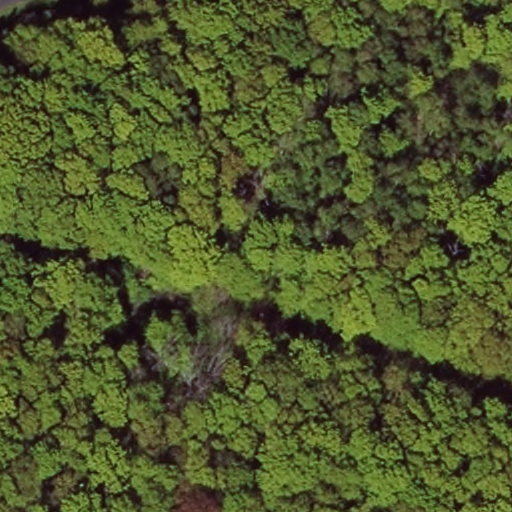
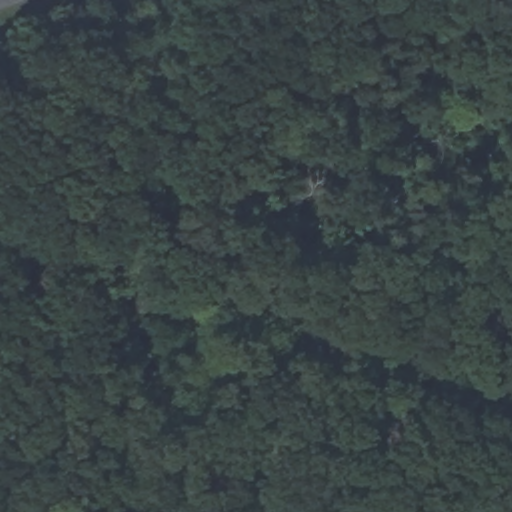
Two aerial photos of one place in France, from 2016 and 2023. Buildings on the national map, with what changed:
[]

